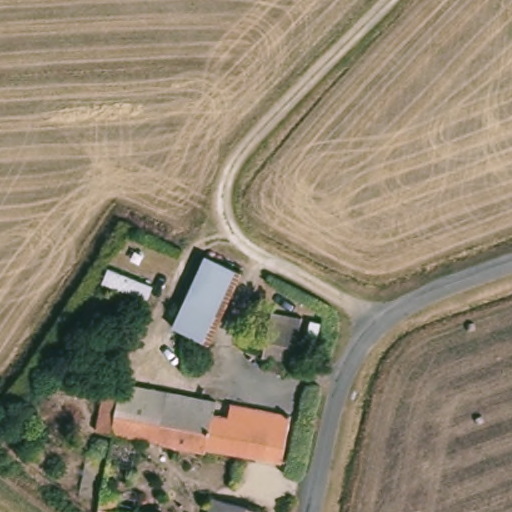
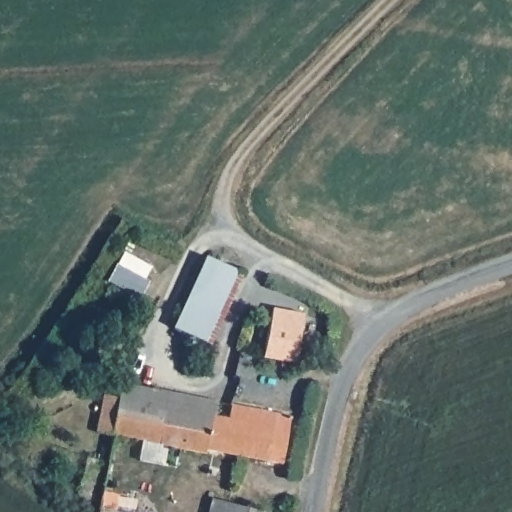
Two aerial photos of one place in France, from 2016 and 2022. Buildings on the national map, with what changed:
unchanged [(219,331),(182,317),(194,288),(201,268),(237,282),(236,287),(219,331)]
unchanged [(267,365),(269,336),(270,320),(302,322),(301,337),(300,367),(267,365)]
unchanged [(173,410),(175,398),(182,400),(207,403),(223,406),(221,418),(233,421),(235,411),(291,421),(283,468),(172,448),(115,438),(99,436),(107,399),(112,400),(173,410)]
unchanged [(103,495),(122,498),(120,512),(100,512),(101,506),(82,506),(87,465),(107,466),(103,495)]
unchanged [(214,512),(218,500),(259,512),(214,512)]

